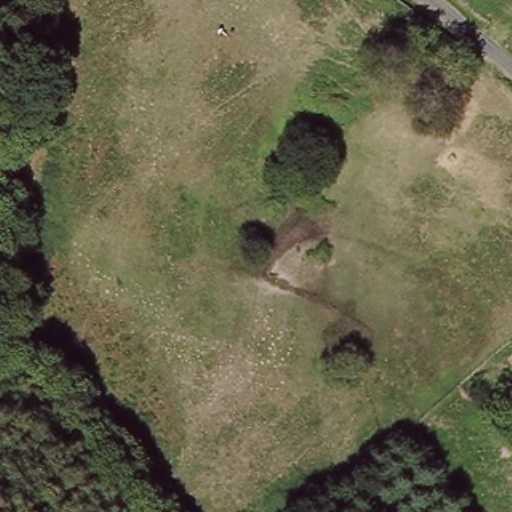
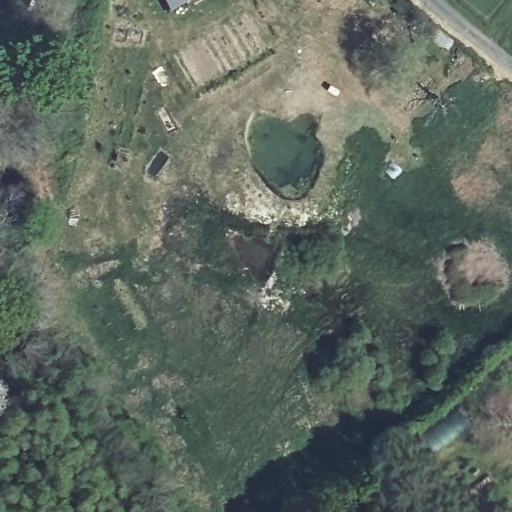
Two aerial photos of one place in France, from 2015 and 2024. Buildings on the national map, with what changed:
new [(168,13),(160,0),(190,0),(168,13)]
unchanged [(373,2),(369,0),(375,0),(373,2)]

